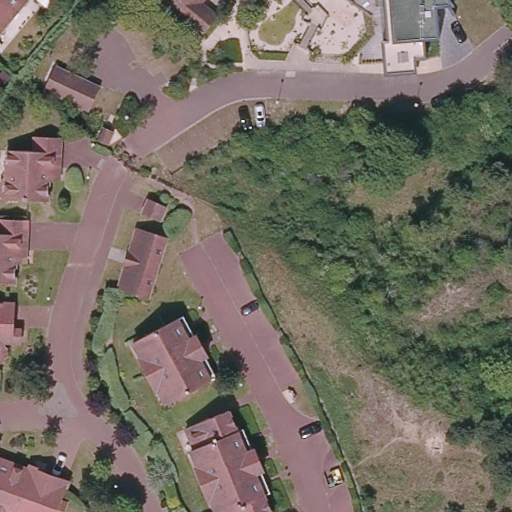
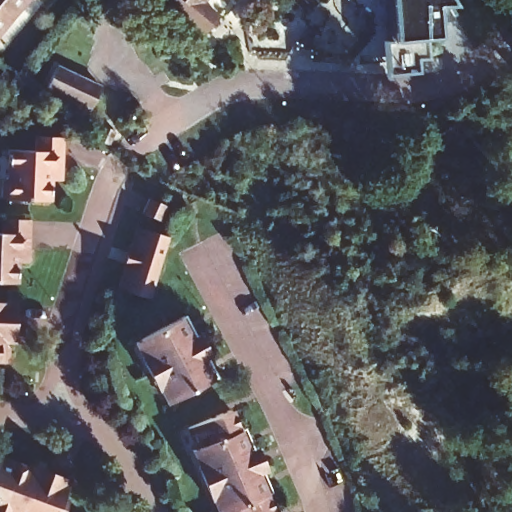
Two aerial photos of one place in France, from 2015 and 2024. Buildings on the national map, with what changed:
unchanged [(27,0),(0,32),(0,0),(27,0)]
unchanged [(202,29),(169,0),(205,0),(218,11),(202,29)]
unchanged [(386,76),(383,42),(389,42),(386,6),(376,7),(376,0),(451,0),(454,4),(437,5),(439,37),(426,38),(427,57),(415,59),(416,72),(386,76)]
unchanged [(100,87),(89,110),(43,90),(53,66),(100,87)]
unchanged [(113,131),(108,144),(98,139),(103,126),(113,131)]
unchanged [(53,177),(53,197),(10,196),(3,191),(4,177),(9,173),(10,146),(38,146),(38,131),(63,131),(63,164),(63,177),(53,177)]
unchanged [(164,207),(159,222),(140,214),(146,199),(164,207)]
unchanged [(0,280),(0,230),(5,231),(6,216),(10,216),(32,217),(31,232),(31,247),(31,260),(20,260),(19,280),(0,280)]
unchanged [(138,222),(173,234),(152,296),(118,286),(138,222)]
unchanged [(15,341),(0,340),(0,299),(8,299),(7,322),(16,323),(15,341)]
unchanged [(158,389),(155,391),(139,359),(143,358),(134,342),(138,340),(184,316),(216,378),(170,402),(166,404),(158,389)]
unchanged [(1,346),(0,353),(0,345),(1,346)]
unchanged [(211,499),(208,501),(194,470),(198,468),(191,452),(195,450),(186,428),(228,411),(238,431),(243,428),(270,493),(264,496),(271,512),(216,512),(211,499)]
unchanged [(28,463),(29,459),(44,465),(44,467),(69,476),(66,483),(55,512),(0,512),(0,454),(28,463)]

